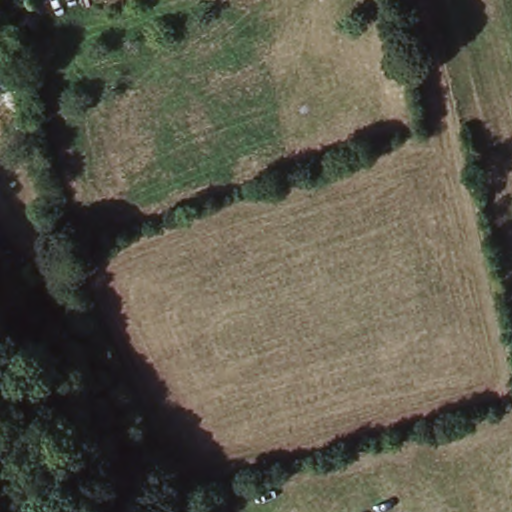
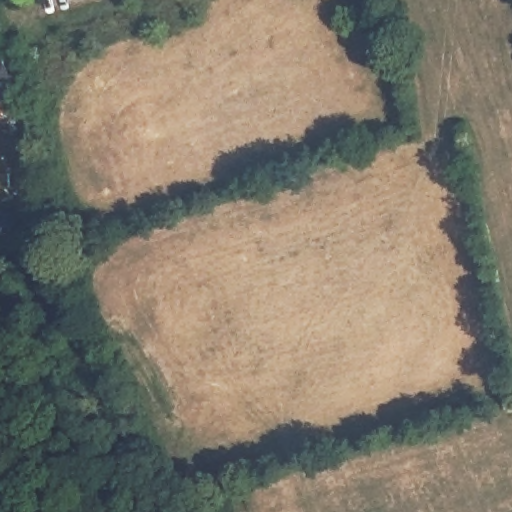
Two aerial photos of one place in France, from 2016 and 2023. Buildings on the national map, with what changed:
unchanged [(17,89),(0,95),(0,63),(7,61),(17,89)]

